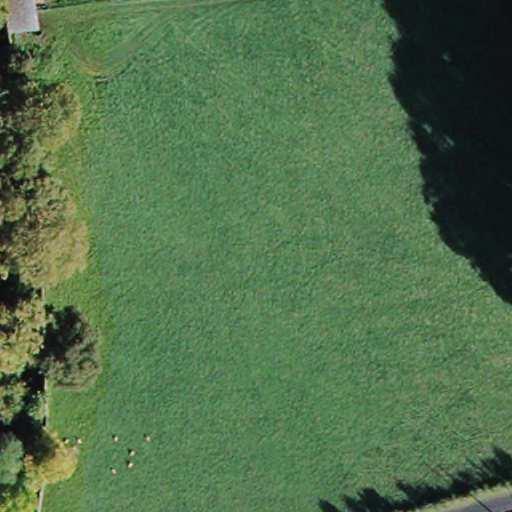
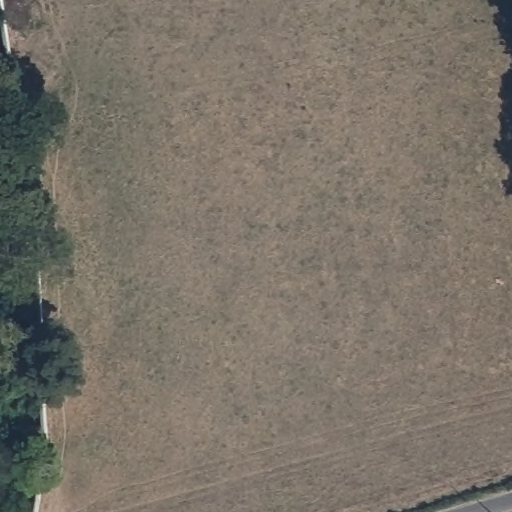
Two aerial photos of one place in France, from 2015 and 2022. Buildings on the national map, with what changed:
unchanged [(40,34),(7,37),(2,0),(36,0),(37,11),(40,34)]

